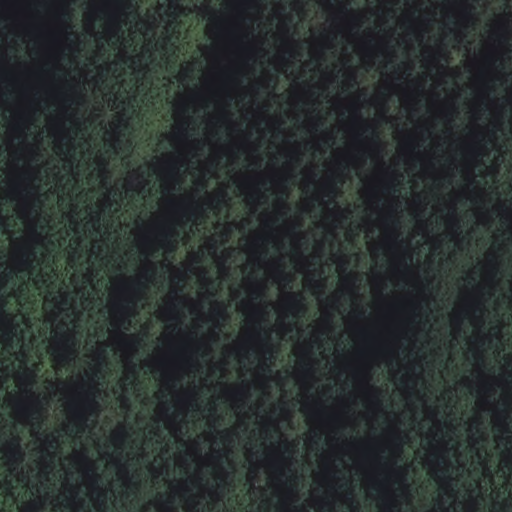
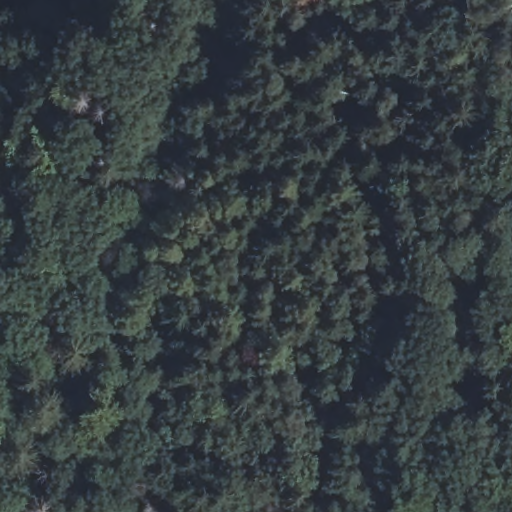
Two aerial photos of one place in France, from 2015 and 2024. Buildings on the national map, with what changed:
unchanged [(355,331),(356,348),(328,350),(327,333),(355,331)]

